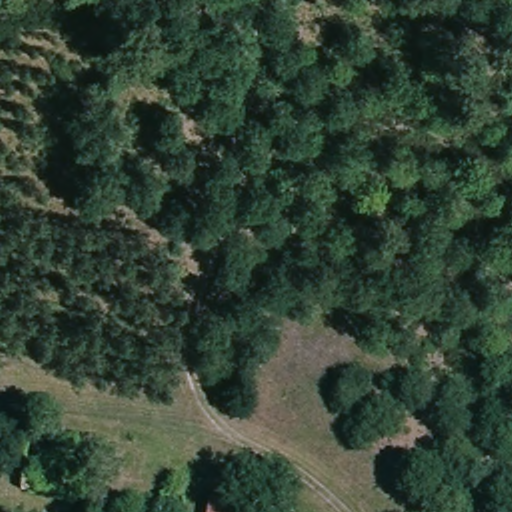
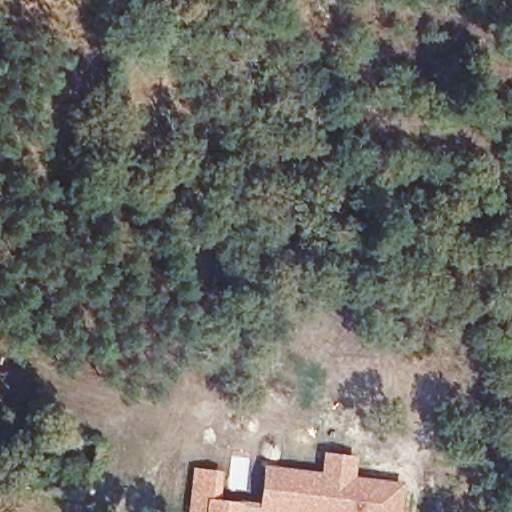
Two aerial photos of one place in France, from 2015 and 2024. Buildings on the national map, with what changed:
new [(240,511),(241,500),(258,501),(262,465),(320,472),(322,452),(355,456),(354,477),(402,482),(399,512),(252,512),(240,511)]
unchanged [(206,496),(241,500),(240,512),(205,512),(206,496)]

